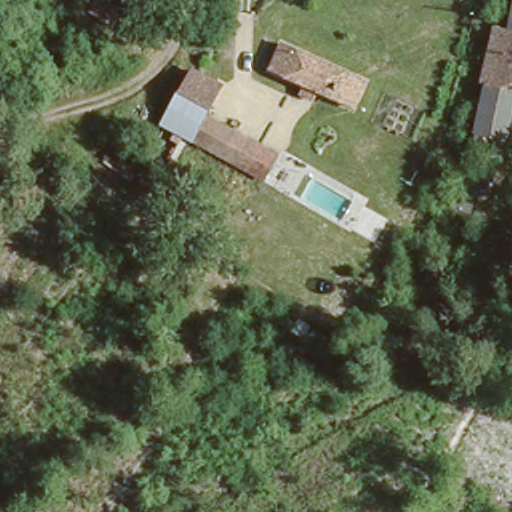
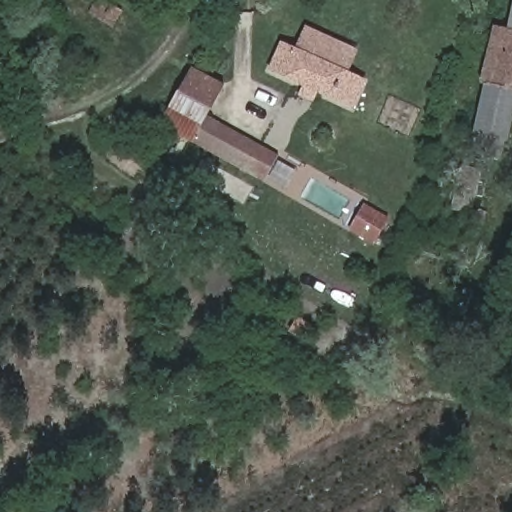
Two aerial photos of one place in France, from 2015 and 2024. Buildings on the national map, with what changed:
unchanged [(112,20),(93,10),(98,0),(108,0),(121,8),(112,20)]
unchanged [(472,130),(486,80),(481,78),(495,24),(506,25),(512,7),(512,97),(501,137),(496,157),(467,151),(472,130)]
unchanged [(254,69),(273,32),(283,36),(376,76),(355,115),(254,69)]
unchanged [(273,146),(259,176),(152,120),(169,91),(182,68),(210,83),(198,107),(273,146)]
unchanged [(130,185),(102,177),(116,152),(141,162),(130,185)]

